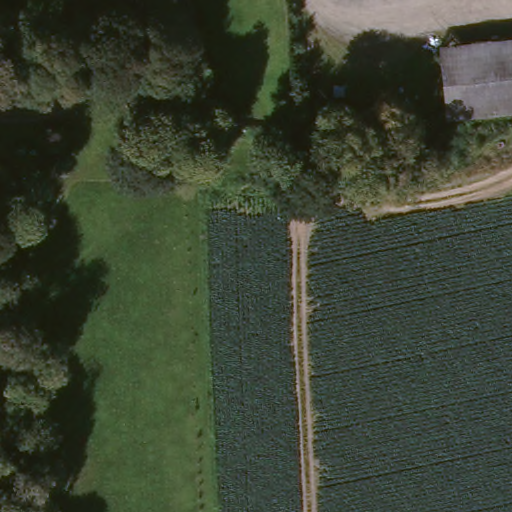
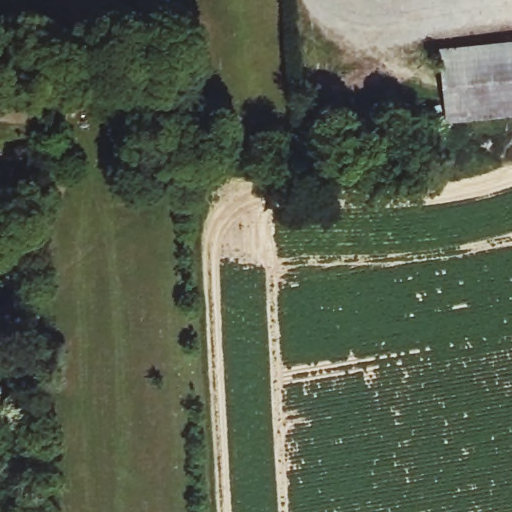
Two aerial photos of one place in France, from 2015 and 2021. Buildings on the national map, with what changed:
unchanged [(512,45),(512,119),(440,126),(438,109),(435,51),(512,45)]

